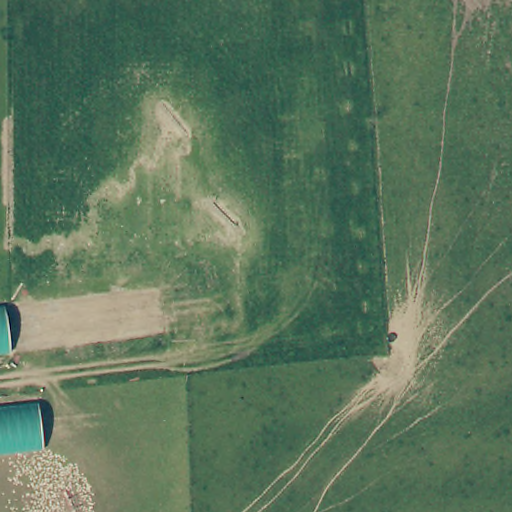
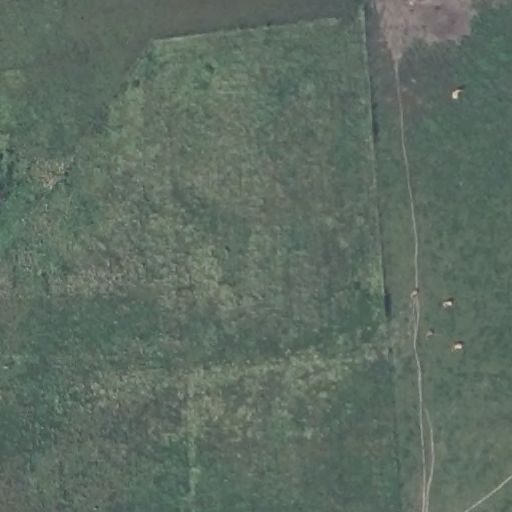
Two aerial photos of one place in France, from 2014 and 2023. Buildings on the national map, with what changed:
demolished [(0,308),(6,308),(11,354),(0,355),(0,308)]
demolished [(0,408),(40,405),(44,456),(0,461),(0,408)]

